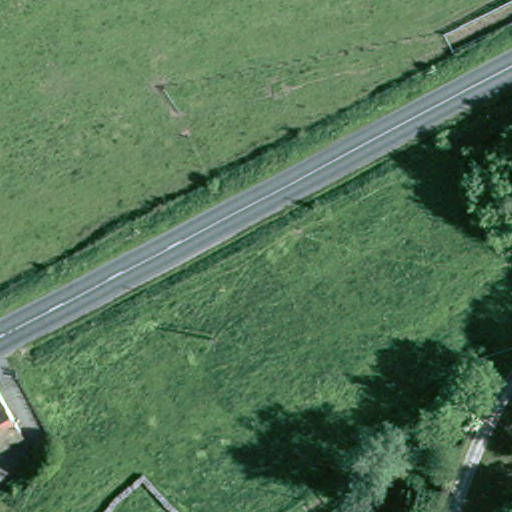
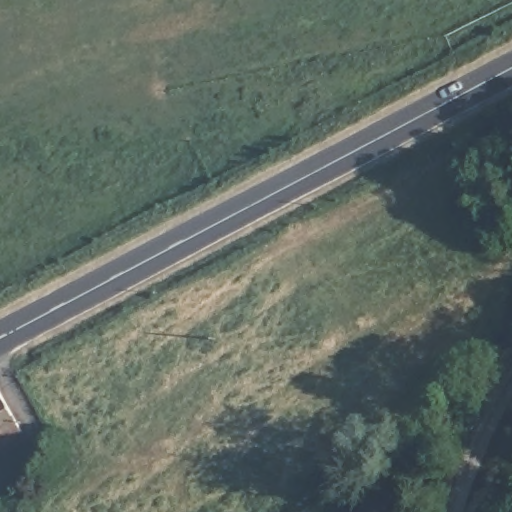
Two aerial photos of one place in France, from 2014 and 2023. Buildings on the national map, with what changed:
unchanged [(0,441),(0,403),(17,432),(0,441)]

